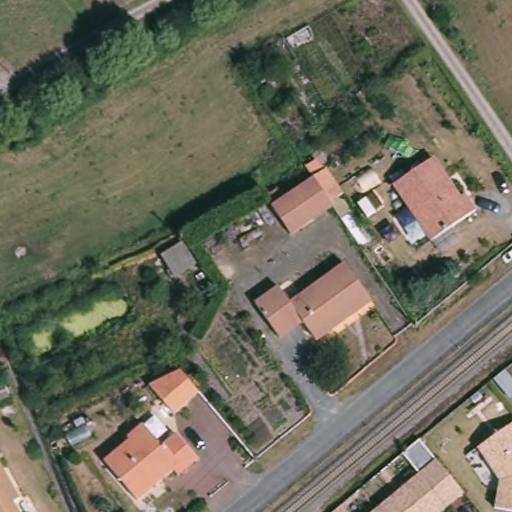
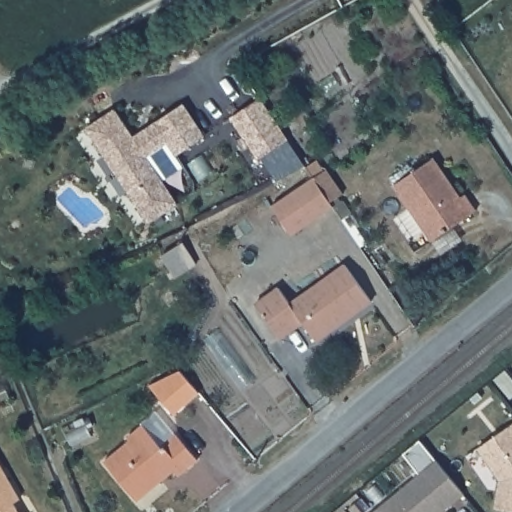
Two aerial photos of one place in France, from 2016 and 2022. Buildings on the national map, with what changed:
new [(260,98),(288,140),(259,159),(231,117),(260,98)]
new [(133,136),(154,122),(182,103),(204,135),(176,155),(167,142),(147,156),(178,203),(150,222),(86,129),(114,109),(133,136)]
unchanged [(431,156),(458,196),(463,192),(474,209),(429,239),(392,182),(431,156)]
unchanged [(315,191),(327,183),(338,200),(326,208),(328,211),(286,240),(266,211),(308,182),(315,191)]
unchanged [(250,303),(274,287),(286,303),(341,265),(367,301),(311,340),(298,322),(274,338),(250,303)]
unchanged [(149,385),(179,370),(198,392),(173,413),(149,385)]
unchanged [(100,461),(125,440),(123,437),(138,425),(156,446),(171,434),(192,460),(174,475),(169,470),(131,500),(100,461)]
unchanged [(499,485),(476,453),(512,429),(512,512),(494,512),(499,485)]
unchanged [(410,457),(419,450),(429,462),(420,470),(410,457)]
unchanged [(436,465),(464,498),(448,512),(380,512),(436,465)]
unchanged [(15,504),(8,507),(11,512),(0,512),(0,478),(15,504)]

